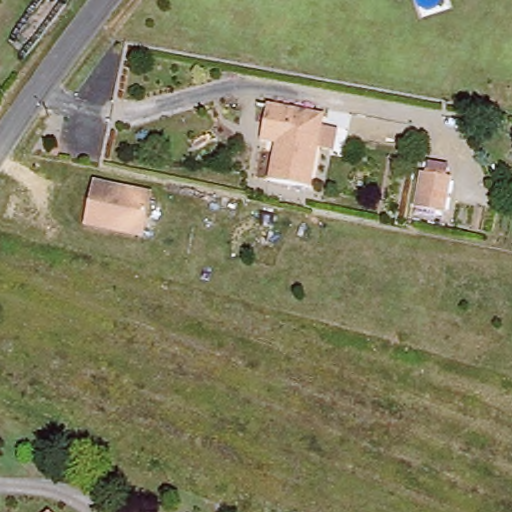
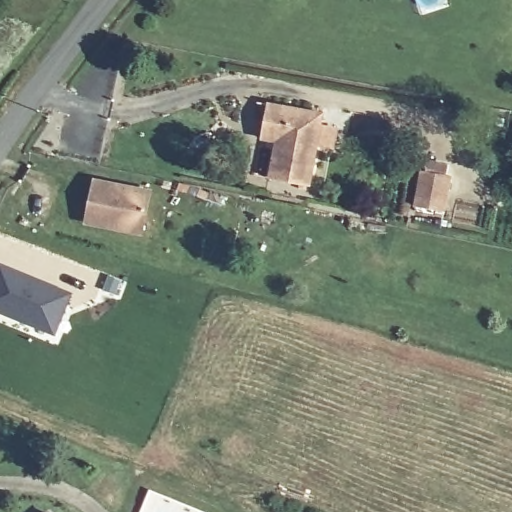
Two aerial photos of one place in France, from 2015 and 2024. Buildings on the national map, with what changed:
unchanged [(324,121),(310,194),(270,186),(278,148),(274,147),(262,145),(266,127),(269,111),(324,121)]
unchanged [(444,219),(416,214),(423,179),(426,179),(427,170),(447,173),(446,183),(451,183),(444,219)]
unchanged [(146,194),(139,236),(84,226),(91,184),(146,194)]
new [(55,336),(0,313),(0,262),(73,291),(55,336)]

